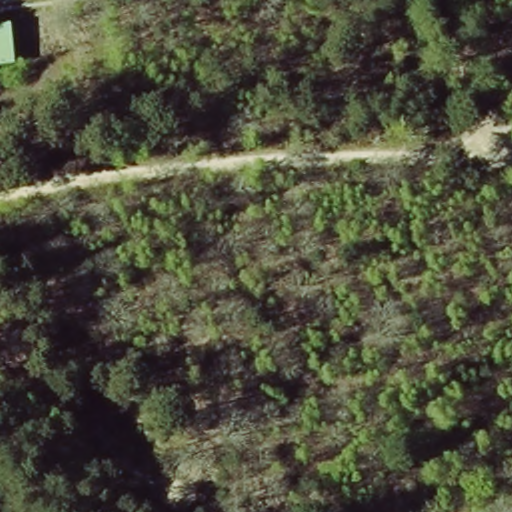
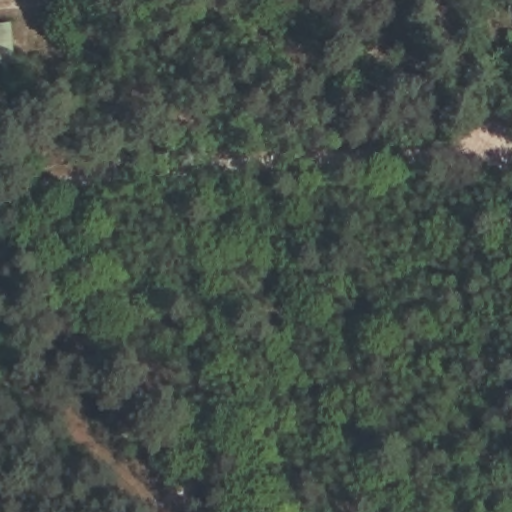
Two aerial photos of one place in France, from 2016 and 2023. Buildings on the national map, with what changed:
unchanged [(14,66),(0,68),(0,25),(10,23),(14,66)]

